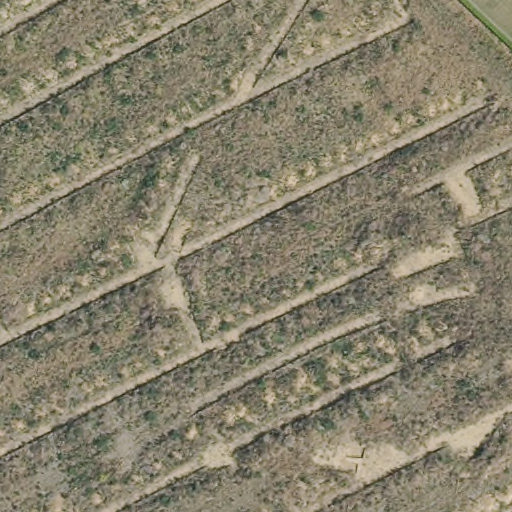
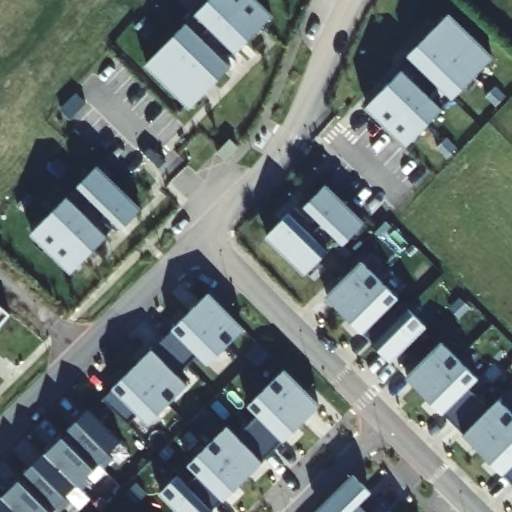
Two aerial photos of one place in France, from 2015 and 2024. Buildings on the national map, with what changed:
new [(274,13),(190,108),(145,65),(208,0),(260,0),(274,13)]
new [(494,53),(408,146),(366,106),(405,67),(416,79),(424,71),(408,55),(450,11),(494,53)]
new [(231,138),(238,146),(225,159),(218,151),(231,138)]
new [(142,208),(122,228),(118,225),(72,270),(32,233),(98,163),(142,208)]
new [(365,220),(344,243),(337,238),(304,274),(265,237),(289,211),(293,206),(307,221),(312,214),(305,207),(327,183),(365,220)]
new [(399,296),(388,307),(398,316),(408,306),(428,325),(393,360),(326,294),(362,259),(399,296)]
new [(245,325),(210,363),(200,352),(179,373),(189,383),(150,421),(140,411),(129,424),(104,399),(115,385),(209,290),(245,325)]
new [(12,314),(0,327),(0,304),(12,314)]
new [(466,387),(488,408),(499,396),(512,410),(512,482),(406,375),(441,340),(478,375),(466,387)]
new [(284,440),(279,435),(262,455),(220,499),(215,494),(207,502),(215,510),(213,512),(175,512),(158,494),(179,473),(188,483),(197,476),(188,467),(229,423),(240,434),(256,416),(246,406),(285,366),(321,401),(284,440)]
new [(120,438),(107,451),(113,457),(103,468),(67,432),(91,408),(120,438)]
new [(97,462),(86,473),(92,479),(81,489),(45,453),(67,432),(97,462)]
new [(75,483),(64,494),(70,500),(59,511),(24,475),(45,453),(75,483)]
new [(360,503),(369,512),(321,512),(318,508),(353,473),(372,490),(360,503)]
new [(46,512),(17,512),(2,496),(24,475),(53,505),(46,512)]
new [(17,512),(0,512),(0,498),(2,496),(17,512)]
new [(393,512),(388,512),(390,509),(393,512)]

